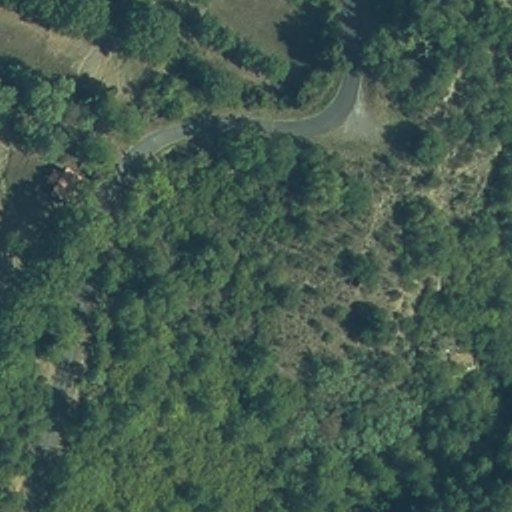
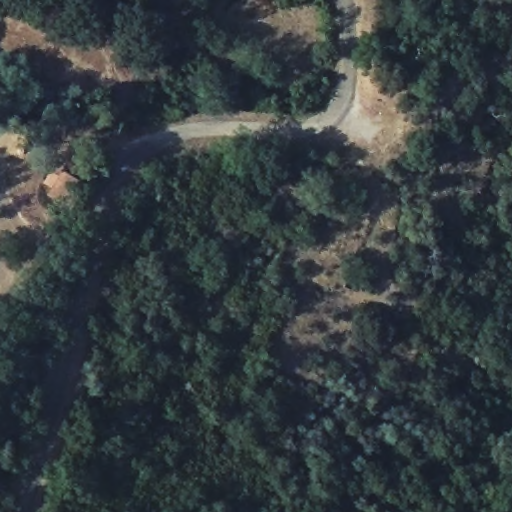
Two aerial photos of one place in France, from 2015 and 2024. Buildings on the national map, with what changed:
unchanged [(77,206),(48,191),(60,170),(87,185),(77,206)]

